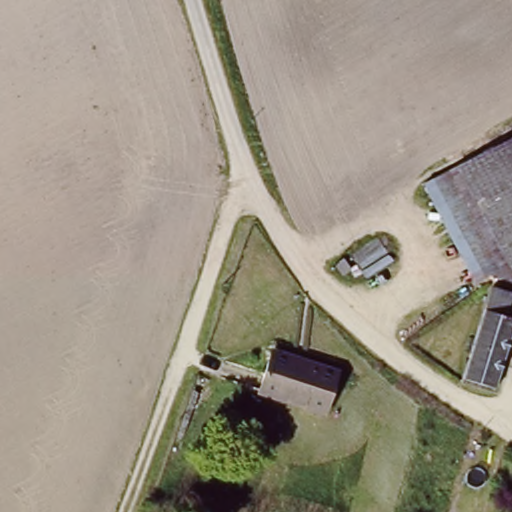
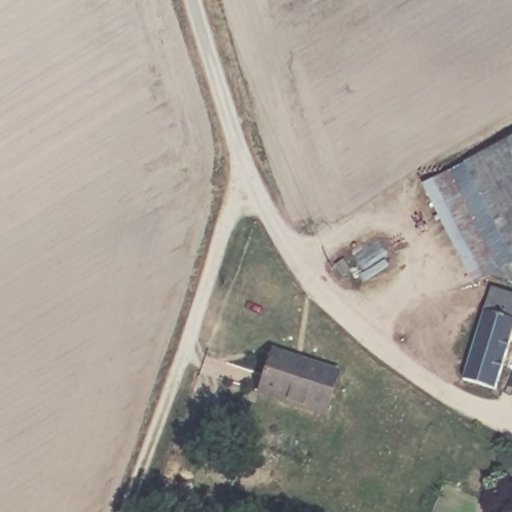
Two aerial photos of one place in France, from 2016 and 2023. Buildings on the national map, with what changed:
unchanged [(495,274),(475,281),(422,183),(512,136),(512,286),(495,274)]
unchanged [(492,286),(512,292),(512,340),(495,393),(462,380),(492,286)]
unchanged [(321,412),(253,390),(267,342),(337,366),(321,412)]

